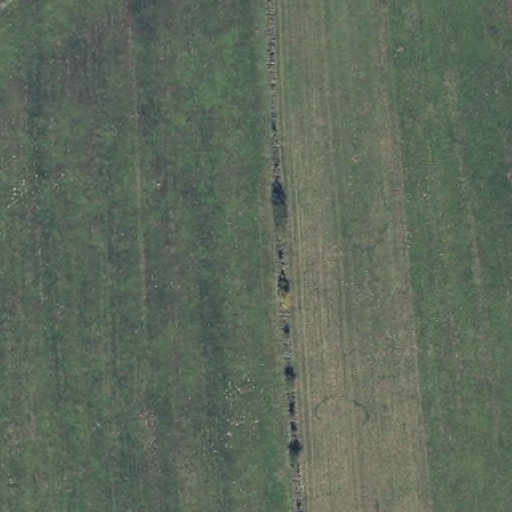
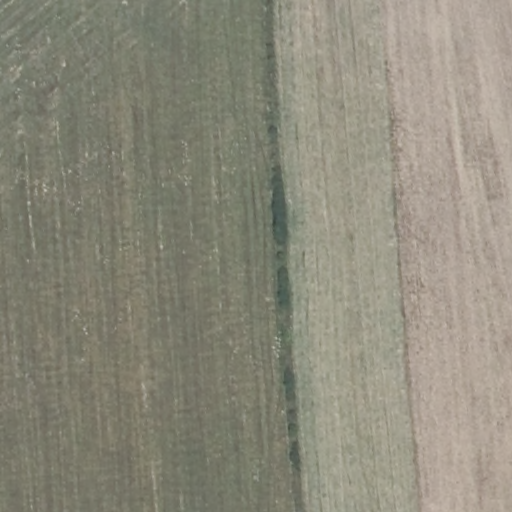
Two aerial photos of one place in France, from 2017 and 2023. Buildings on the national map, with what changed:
[]

